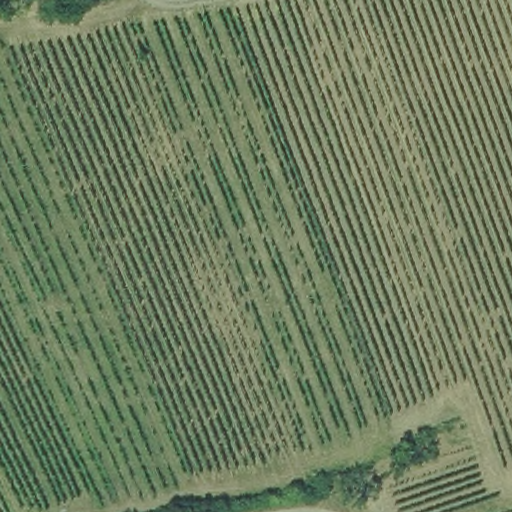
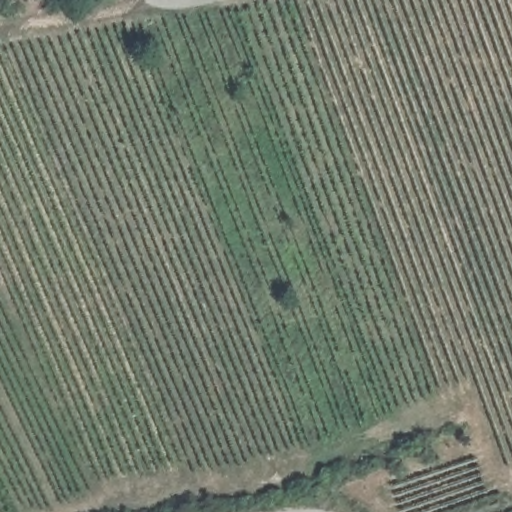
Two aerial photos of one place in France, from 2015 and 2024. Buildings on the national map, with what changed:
unchanged [(68,0),(94,0),(72,6),(68,0)]

